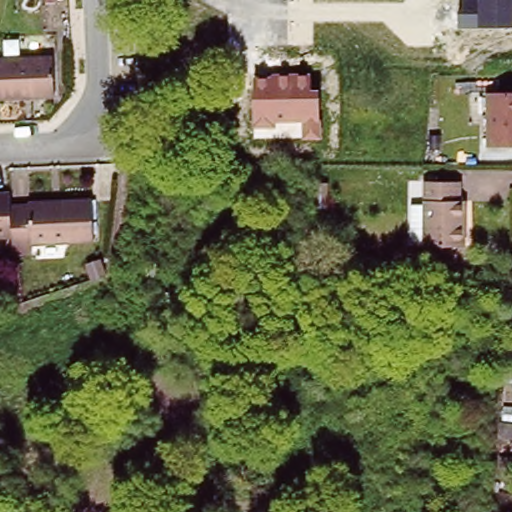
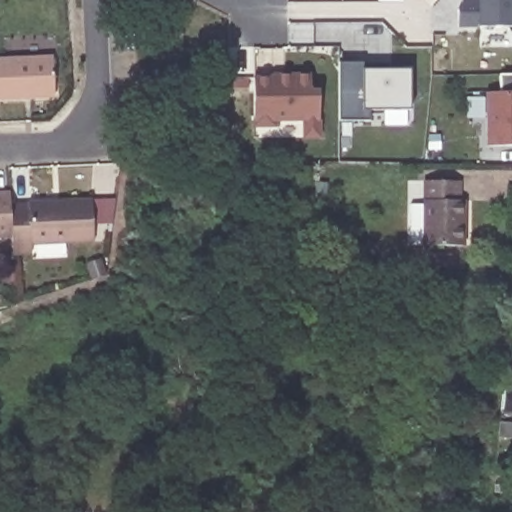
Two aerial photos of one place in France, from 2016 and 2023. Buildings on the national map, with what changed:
unchanged [(478,0),(512,0),(512,27),(458,27),(458,1),(478,0)]
unchanged [(53,96),(0,99),(0,59),(52,57),(53,96)]
new [(375,110),(372,120),(340,120),(338,62),(390,62),(392,68),(412,69),(411,109),(375,110)]
unchanged [(253,76),(310,75),(310,88),(321,88),(322,138),(304,139),(303,121),(275,123),(275,128),(253,127),(253,76)]
unchanged [(485,90),(512,89),(512,144),(487,144),(485,90)]
unchanged [(425,172),(460,172),(458,192),(463,192),(463,236),(423,236),(425,172)]
unchanged [(327,185),(327,207),(313,207),(314,183),(327,185)]
unchanged [(12,237),(0,238),(0,194),(10,194),(10,206),(12,237)]
unchanged [(10,206),(29,205),(28,203),(92,200),(94,242),(30,245),(31,254),(13,254),(12,237),(10,206)]
unchanged [(429,257),(429,245),(457,245),(457,257),(429,257)]
unchanged [(502,407),(512,408),(512,439),(497,437),(500,422),(502,423),(502,407)]

